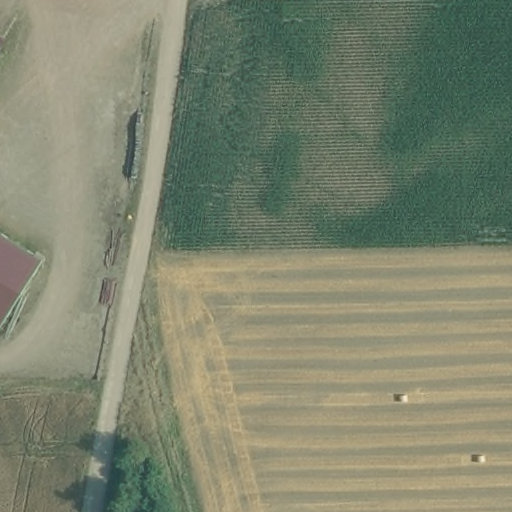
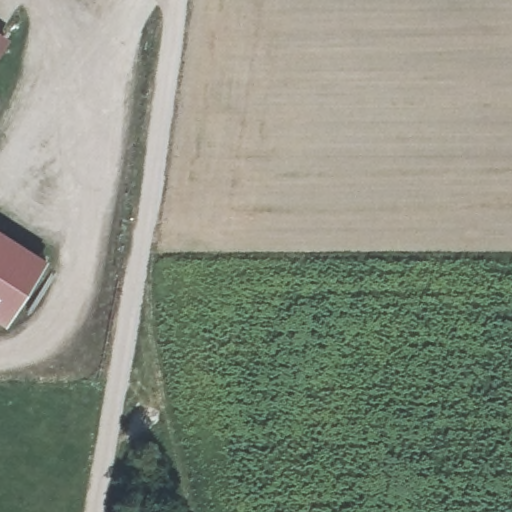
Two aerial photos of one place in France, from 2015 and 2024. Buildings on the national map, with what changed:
unchanged [(36,251),(0,309),(0,228),(36,251)]

